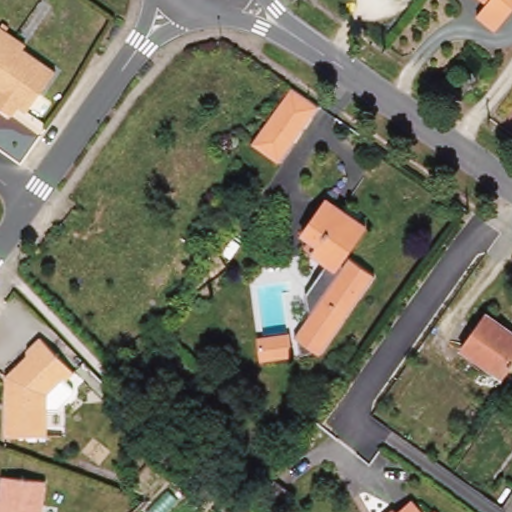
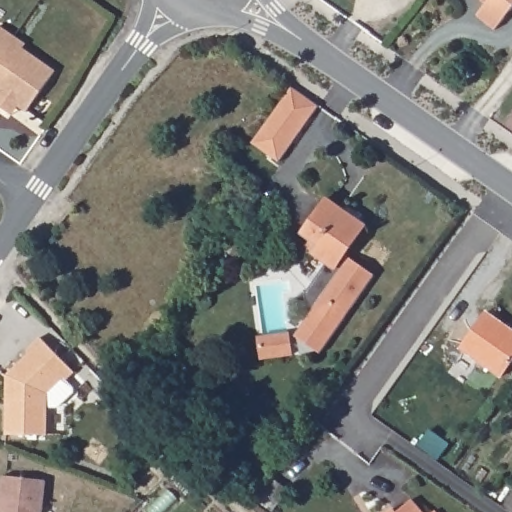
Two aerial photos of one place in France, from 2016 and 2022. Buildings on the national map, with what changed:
unchanged [(498,28),(478,13),(487,1),(485,0),(512,0),(512,10),(498,28)]
unchanged [(0,102),(0,93),(2,90),(0,89),(0,29),(4,24),(20,35),(30,42),(27,46),(60,69),(30,110),(22,104),(16,113),(11,109),(0,102)]
unchanged [(278,163),(251,144),(290,88),(318,105),(278,163)]
unchanged [(317,355),(314,352),(298,354),(296,339),(292,336),(307,316),(301,298),(324,268),(308,256),(299,249),(306,240),(298,234),(326,197),(366,227),(340,264),(343,267),(350,259),(375,278),(317,355)]
unchanged [(512,329),(512,358),(501,374),(460,347),(485,310),(512,329)]
unchanged [(289,356),(259,360),(256,338),(286,333),(289,356)]
unchanged [(45,335),(79,370),(70,378),(77,385),(77,391),(63,405),(51,405),(51,433),(10,433),(11,373),(25,360),(32,353),(33,347),(45,335)]
unchanged [(45,479),(42,512),(0,512),(0,488),(1,474),(45,479)]
unchanged [(420,512),(401,512),(411,502),(420,512)]
unchanged [(437,512),(433,512),(435,510),(437,512)]

